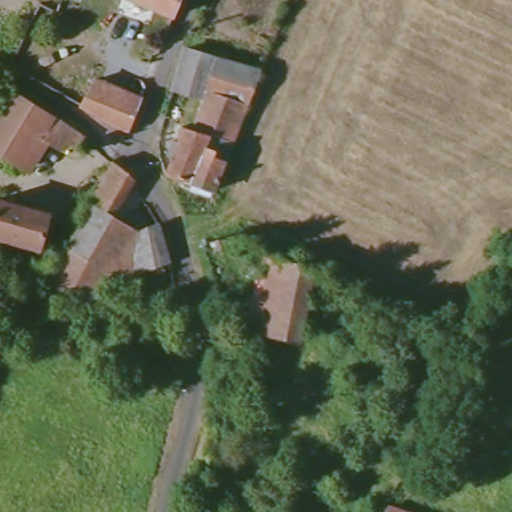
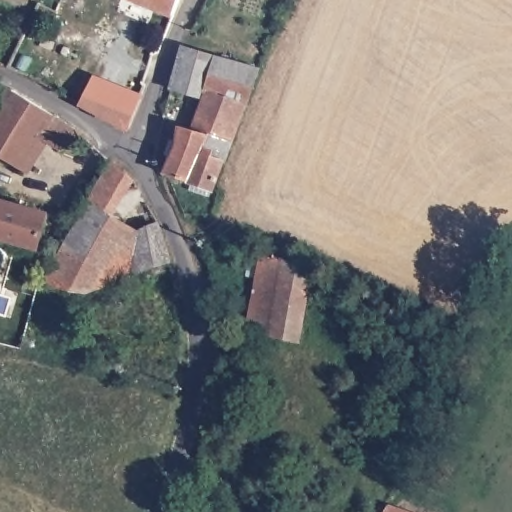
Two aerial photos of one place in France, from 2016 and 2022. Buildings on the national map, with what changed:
unchanged [(130,0),(176,0),(170,17),(130,0)]
unchanged [(179,44),(211,54),(201,91),(168,81),(179,44)]
unchanged [(201,91),(211,54),(254,66),(228,136),(190,124),(201,91)]
unchanged [(91,75),(137,92),(129,112),(123,125),(94,111),(78,102),(91,75)]
unchanged [(42,110),(89,142),(80,152),(71,146),(66,153),(46,142),(30,173),(0,156),(0,103),(9,109),(17,96),(42,110)]
unchanged [(186,186),(188,179),(161,170),(168,154),(163,151),(170,135),(174,137),(177,122),(190,124),(228,136),(209,186),(206,192),(186,186)]
unchanged [(110,159),(129,175),(112,191),(100,210),(134,230),(131,248),(129,270),(120,275),(93,283),(82,287),(40,279),(85,201),(110,159)]
unchanged [(50,214),(40,249),(0,236),(0,199),(50,214)]
unchanged [(161,240),(165,257),(129,270),(131,248),(134,230),(155,221),(161,240)]
unchanged [(309,266),(296,341),(244,330),(259,252),(309,266)]
unchanged [(384,502),(406,508),(415,512),(378,512),(384,502)]

